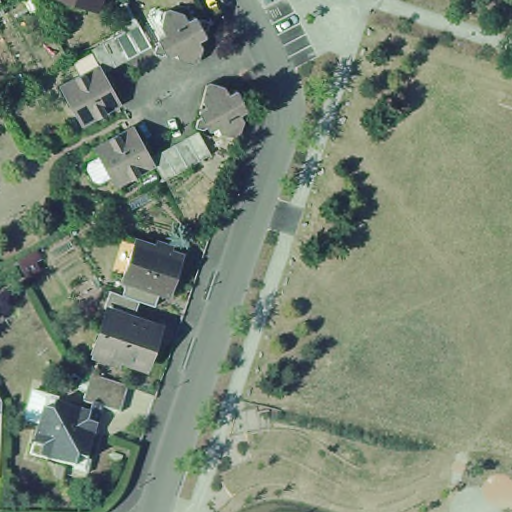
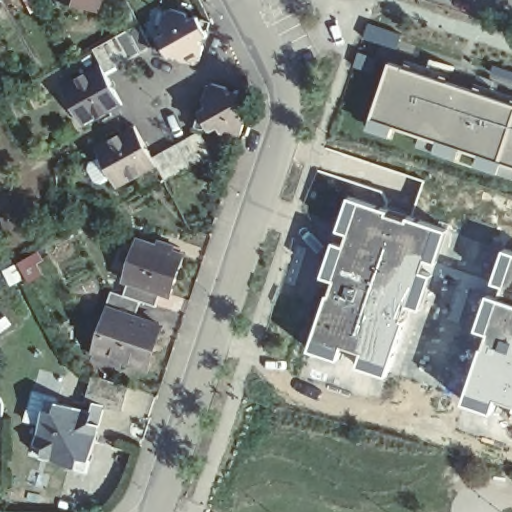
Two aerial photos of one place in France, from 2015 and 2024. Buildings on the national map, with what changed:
unchanged [(57,9),(46,6),(43,0),(59,0),(57,9)]
unchanged [(107,14),(66,0),(112,0),(107,14)]
unchanged [(134,27),(121,35),(108,12),(122,5),(134,27)]
unchanged [(151,57),(152,50),(157,47),(155,44),(155,42),(162,37),(159,31),(162,17),(167,15),(182,20),(185,25),(191,22),(194,23),(196,27),(200,24),(206,26),(205,32),(204,33),(200,36),(202,40),(196,44),(199,51),(195,66),(191,68),(176,64),(172,57),(166,61),(164,61),(162,57),(158,59),(151,57)]
unchanged [(95,68),(87,54),(111,41),(129,31),(135,28),(147,51),(124,64),(100,77),(117,109),(104,116),(107,120),(94,127),(91,122),(79,130),(72,117),(73,116),(64,102),(57,90),(95,68)]
new [(390,62),(512,104),(512,168),(370,119),(390,62)]
unchanged [(192,128),(192,125),(193,122),(197,121),(195,116),(196,114),(202,111),(199,104),(200,101),(202,90),(207,87),(222,92),(226,99),(232,95),(234,95),(235,96),(237,99),(242,107),(243,111),(242,115),(237,119),(240,125),(235,139),(232,141),(217,137),(214,130),(208,134),(204,132),(202,129),(199,131),(192,128)]
unchanged [(237,101),(237,99),(241,98),(247,100),(246,105),(242,107),(237,101)]
unchanged [(89,185),(83,174),(85,167),(95,161),(91,152),(103,145),(101,141),(114,133),(116,137),(126,132),(130,131),(139,148),(147,162),(171,149),(194,136),(207,160),(183,172),(160,185),(151,170),(112,191),(107,182),(106,180),(96,187),(89,185)]
new [(448,229),(437,265),(426,261),(422,271),(434,275),(422,311),(411,307),(387,378),(356,368),(361,353),(345,347),(341,360),(307,350),(332,280),(322,277),(347,196),(448,229)]
unchanged [(184,255),(171,295),(161,292),(156,306),(140,301),(126,296),(129,282),(124,280),(137,240),(184,255)]
new [(512,251),(512,405),(497,400),(495,412),(462,401),(487,332),(477,328),(505,249),(512,251)]
unchanged [(93,357),(96,351),(109,309),(106,307),(111,291),(121,294),(125,296),(126,296),(140,301),(135,317),(159,326),(145,368),(121,360),(119,366),(93,357)]
unchanged [(92,412),(94,403),(84,400),(92,374),(130,387),(122,412),(105,407),(99,425),(89,460),(79,457),(76,467),(42,456),(44,447),(34,444),(44,409),(54,412),(56,402),(91,412),(92,412)]
unchanged [(2,412),(0,413),(0,399),(2,404),(2,412)]

